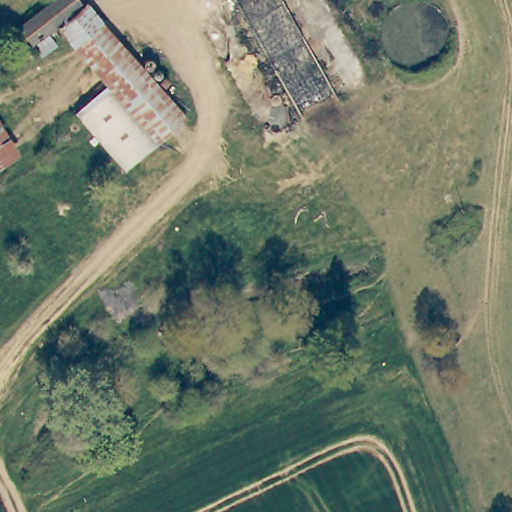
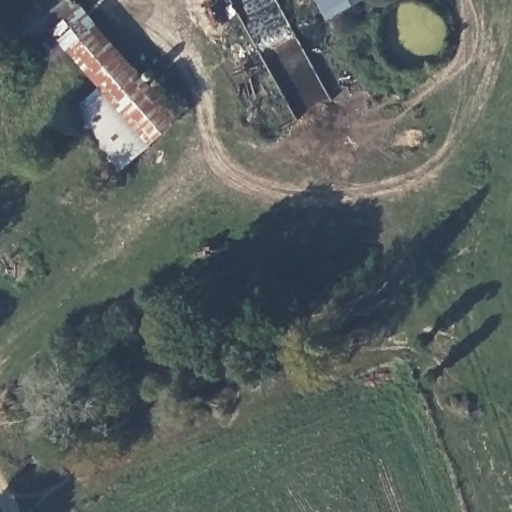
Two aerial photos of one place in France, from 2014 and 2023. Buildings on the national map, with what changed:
unchanged [(51,34),(51,38),(50,41),(47,45),(44,46),(40,47),(36,46),(30,38),(27,39),(14,20),(39,0),(79,0),(85,8),(59,28),(51,34)]
new [(324,0),(367,0),(333,18),(324,0)]
unchanged [(77,116),(109,91),(59,28),(85,8),(89,5),(177,113),(185,123),(126,173),(113,159),(77,116)]

